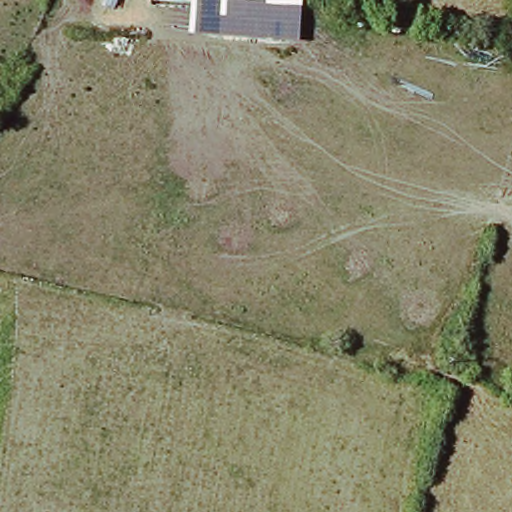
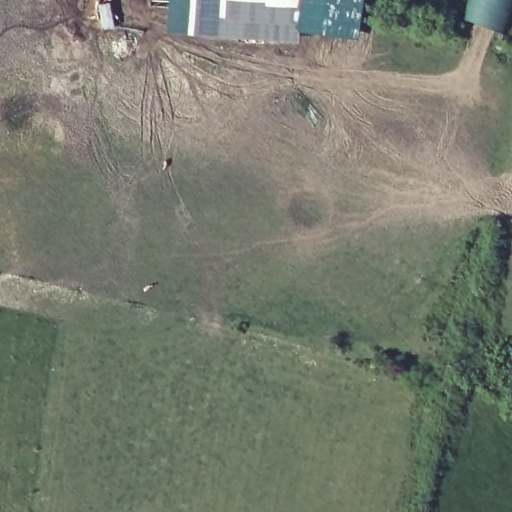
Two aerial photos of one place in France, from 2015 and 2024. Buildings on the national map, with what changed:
unchanged [(182,6),(183,0),(301,0),(300,12),(182,6)]
new [(500,30),(469,20),(476,0),(512,0),(503,26),(500,30)]
unchanged [(298,43),(180,36),(182,6),(300,12),(298,43)]

